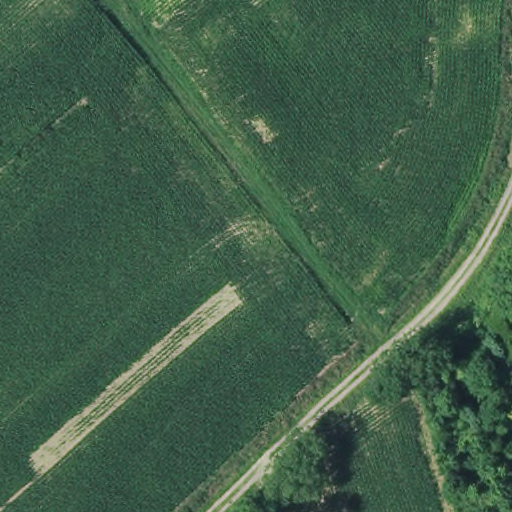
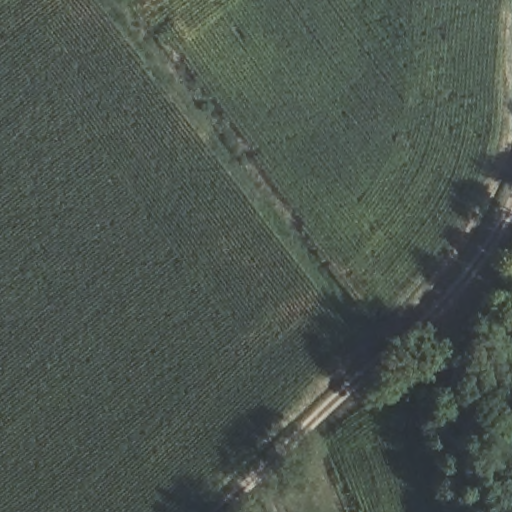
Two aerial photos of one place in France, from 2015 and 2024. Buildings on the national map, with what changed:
[]

